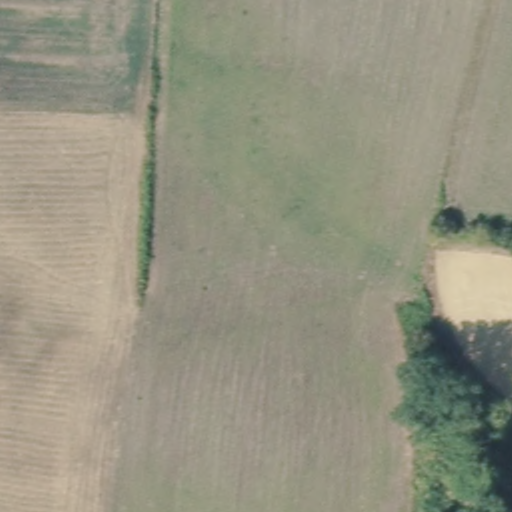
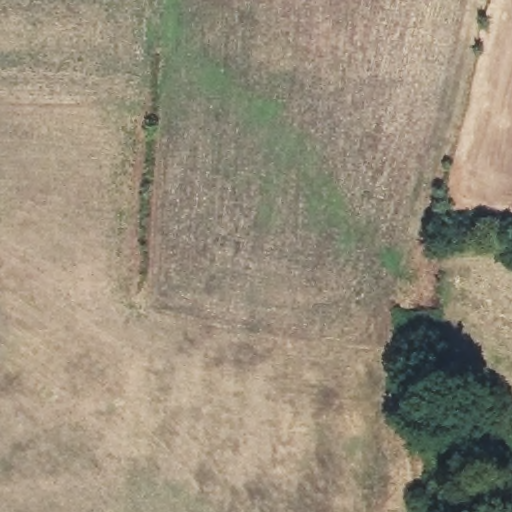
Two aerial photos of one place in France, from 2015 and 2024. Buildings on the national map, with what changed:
[]

